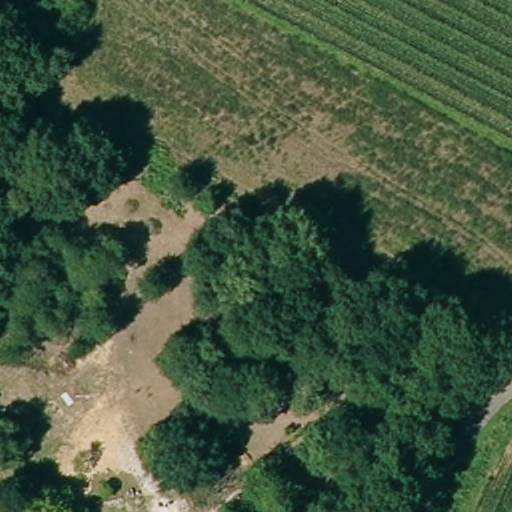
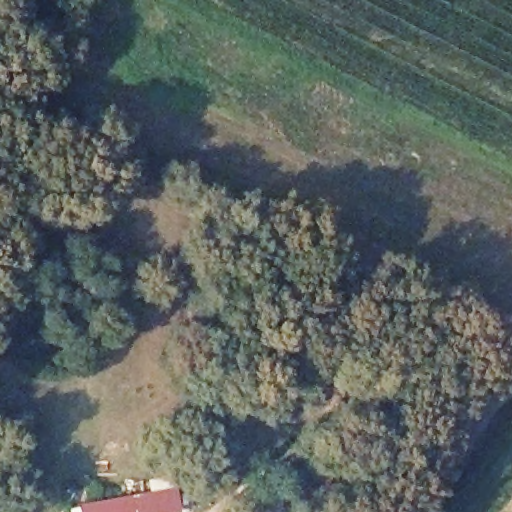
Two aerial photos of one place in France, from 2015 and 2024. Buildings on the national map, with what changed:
new [(176,487),(180,512),(81,512),(80,505),(176,487)]

